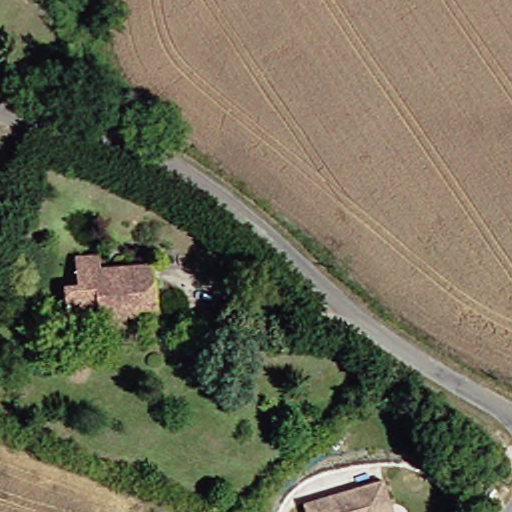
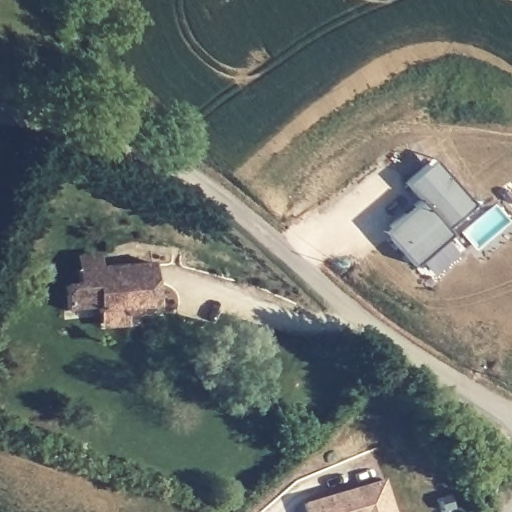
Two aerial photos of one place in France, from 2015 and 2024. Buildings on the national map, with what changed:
new [(383,230),(419,200),(405,183),(435,159),(471,204),(443,227),(447,232),(411,263),(383,230)]
unchanged [(142,316),(143,323),(120,324),(120,319),(95,321),(95,312),(64,314),(62,289),(78,288),(77,274),(100,272),(117,271),(154,268),(157,315),(142,316)]
unchanged [(303,504),(384,479),(392,503),(395,512),(306,512),(303,504)]

